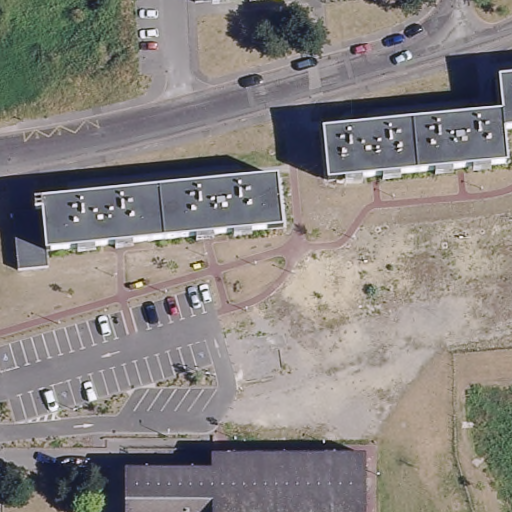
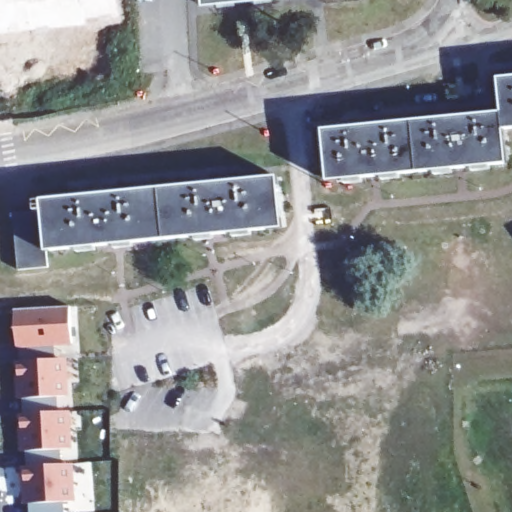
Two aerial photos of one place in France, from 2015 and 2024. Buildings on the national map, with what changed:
unchanged [(497,78),(512,77),(512,127),(501,128),(504,161),(325,180),(321,130),(500,113),(497,78)]
unchanged [(46,210),(46,200),(289,176),(294,226),(59,249),(61,266),(29,269),(23,212),(46,210)]
new [(496,247),(498,277),(488,277),(491,333),(465,336),(464,346),(425,349),(422,253),(496,247)]
new [(73,346),(55,347),(56,359),(67,358),(70,396),(58,396),(60,411),(71,411),(73,449),(61,450),(63,464),(75,464),(77,501),(64,501),(65,512),(30,512),(30,504),(23,505),(22,466),(28,467),(27,452),(20,453),(19,415),(24,415),(24,399),(18,399),(16,361),(22,360),(21,348),(17,349),(14,309),(71,306),(73,346)]
demolished [(124,472),(210,471),(211,456),(364,456),(364,512),(123,512),(124,472)]

